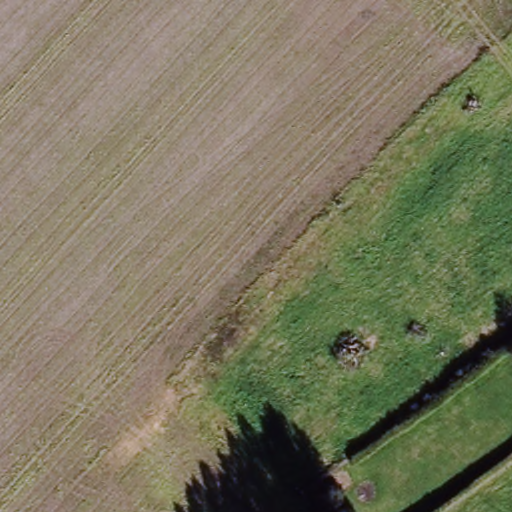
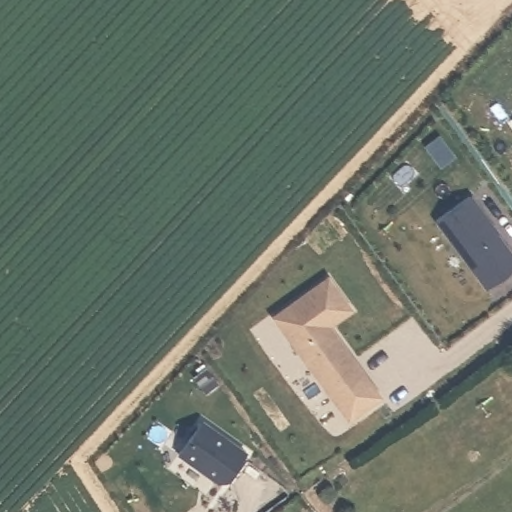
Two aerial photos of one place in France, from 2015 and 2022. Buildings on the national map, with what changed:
new [(498,242),(495,244),(508,261),(510,259),(512,262),(512,280),(488,298),(436,230),(469,205),(498,242)]
new [(326,280),(350,312),(329,328),(346,352),(343,355),(351,367),(356,363),(384,400),(359,420),(331,385),(326,389),(273,321),(326,280)]
new [(201,426),(248,458),(228,487),(219,488),(178,459),(201,426)]

